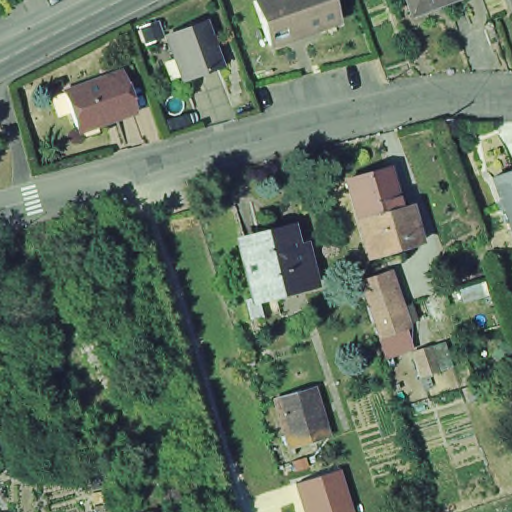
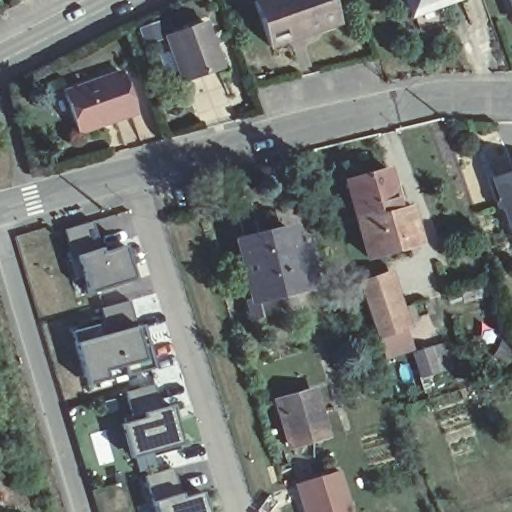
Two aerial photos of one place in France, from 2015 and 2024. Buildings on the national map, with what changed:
unchanged [(261,0),(324,0),(332,26),(265,48),(252,3),(261,0)]
unchanged [(414,18),(408,0),(464,0),(414,18)]
unchanged [(512,6),(510,0),(512,0),(512,6)]
unchanged [(194,25),(198,38),(207,41),(202,49),(210,70),(171,83),(155,39),(194,25)]
unchanged [(118,71),(132,109),(104,119),(103,116),(74,126),(62,90),(118,71)]
unchanged [(512,232),(504,235),(497,215),(492,212),(490,207),(492,201),(497,199),(491,180),(512,172),(512,232)]
unchanged [(365,260),(355,227),(343,185),(385,173),(395,206),(407,202),(409,211),(418,244),(422,254),(368,270),(365,260)]
new [(100,248),(102,252),(124,245),(135,275),(135,280),(87,295),(74,256),(63,229),(92,221),(100,248)]
unchanged [(248,323),(243,303),(251,301),(238,245),(288,233),(293,252),(300,250),(310,285),(272,296),(277,315),(248,323)]
unchanged [(379,335),(372,315),(368,304),(367,299),(361,282),(390,273),(395,289),(400,306),(407,325),(379,335)]
new [(137,328),(142,326),(154,369),(125,377),(122,367),(105,372),(107,380),(86,385),(75,343),(72,332),(96,326),(105,324),(101,309),(130,301),(137,328)]
new [(162,409),(170,408),(180,445),(129,460),(120,425),(132,422),(125,393),(154,385),(162,409)]
unchanged [(306,388),(318,432),(308,435),(284,443),(271,398),(295,391),(306,388)]
new [(182,499),(202,493),(207,512),(155,512),(152,503),(144,477),(172,468),(180,494),(182,499)]
unchanged [(352,512),(303,512),(294,485),(340,472),(352,512)]

